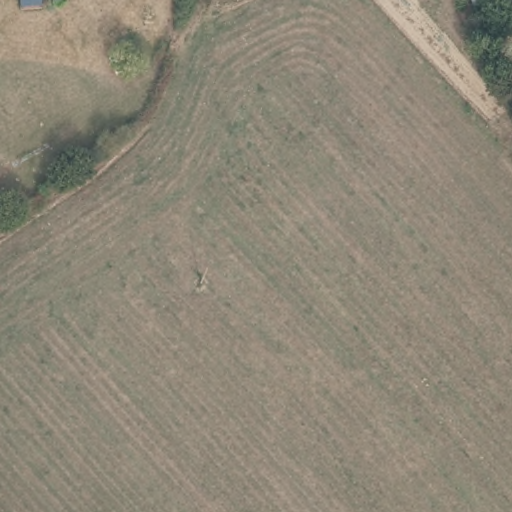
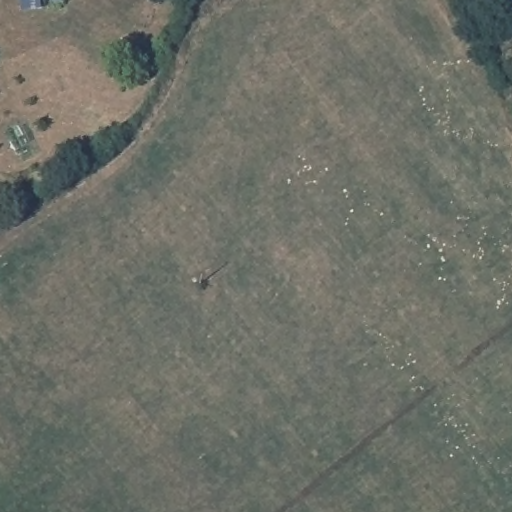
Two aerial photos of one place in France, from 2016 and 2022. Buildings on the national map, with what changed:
[]

